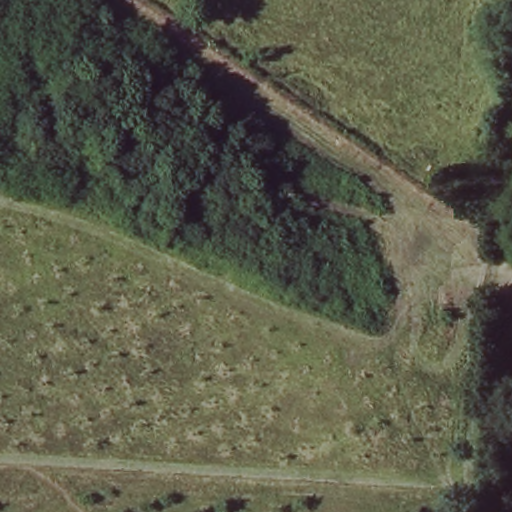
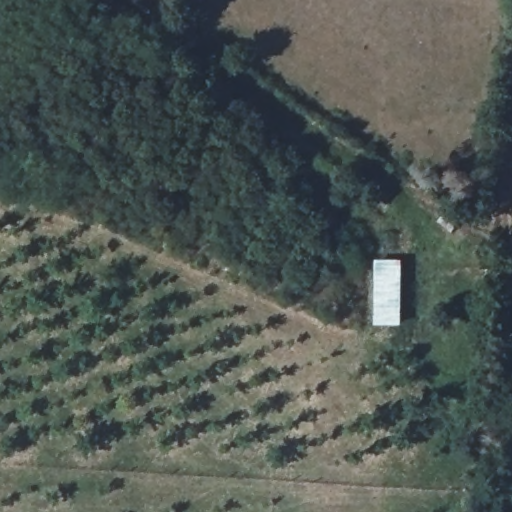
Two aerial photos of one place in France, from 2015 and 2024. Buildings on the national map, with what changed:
new [(376,326),(376,261),(402,262),(401,326),(376,326)]

